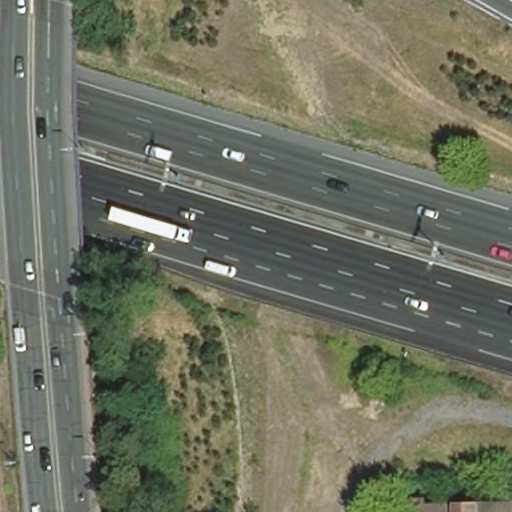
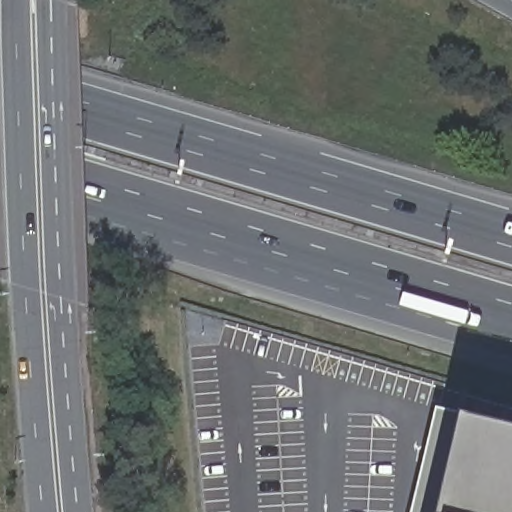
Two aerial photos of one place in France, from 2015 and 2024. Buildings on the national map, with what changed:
new [(458,412),(512,425),(512,512),(410,512),(436,406),(458,412)]
demolished [(457,495),(458,503),(512,499),(512,510),(512,512),(436,512),(435,497),(457,495)]

